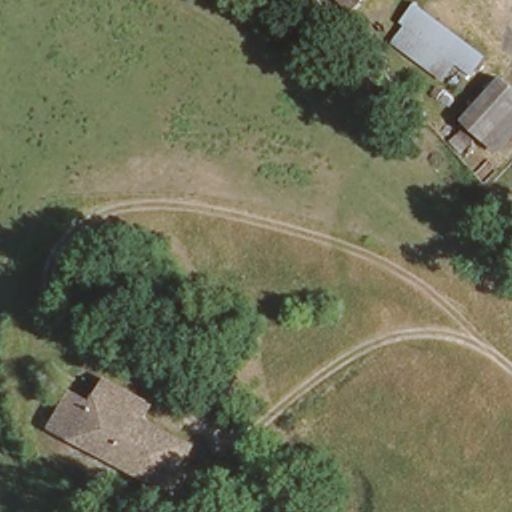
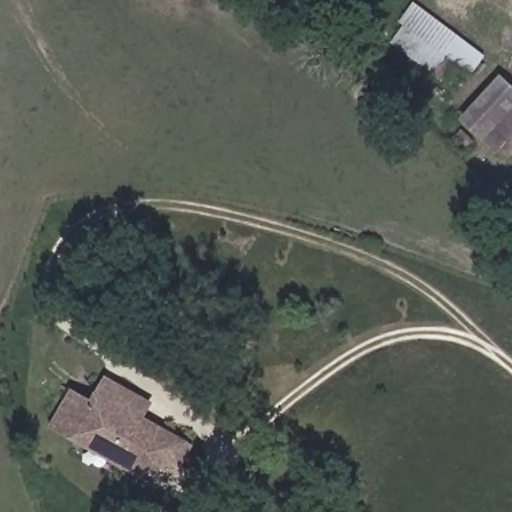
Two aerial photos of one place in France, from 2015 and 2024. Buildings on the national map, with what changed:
unchanged [(352,10),(343,0),(363,0),(352,10)]
unchanged [(486,55),(466,76),(451,65),(435,80),(385,37),(416,0),(419,0),(486,55)]
unchanged [(512,84),(512,135),(496,153),(464,116),(498,72),(512,84)]
unchanged [(154,398),(145,415),(193,445),(183,469),(165,458),(150,478),(47,424),(68,383),(88,396),(104,374),(154,398)]

